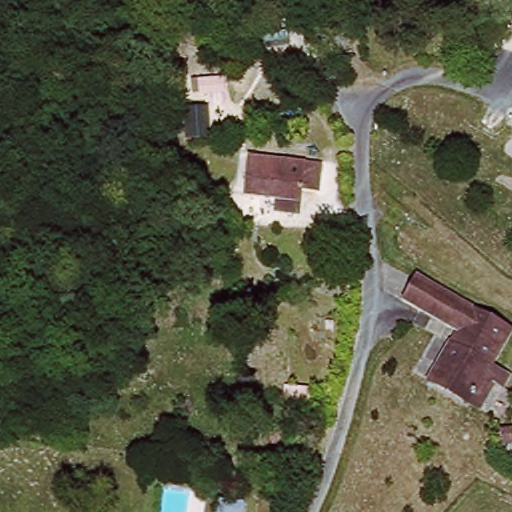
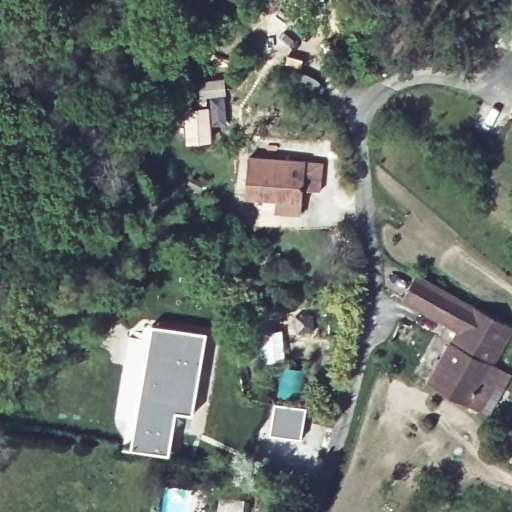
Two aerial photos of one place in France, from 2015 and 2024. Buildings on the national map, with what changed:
new [(204,107),(206,125),(206,138),(184,139),(182,109),(199,108),(204,107)]
unchanged [(278,212),(277,199),(246,195),(251,157),(321,165),(320,189),(303,188),(301,201),(298,213),(278,212)]
unchanged [(389,292),(397,278),(410,285),(417,273),(484,314),(473,334),(470,338),(389,292)]
new [(150,322),(205,332),(183,455),(128,446),(150,322)]
unchanged [(506,387),(494,384),(482,409),(474,405),(424,383),(444,341),(464,351),(470,338),(473,334),(496,345),(489,362),(493,364),(512,373),(506,387)]
new [(273,401),(304,406),(299,438),(267,432),(273,401)]
unchanged [(219,512),(222,498),(245,502),(243,512),(219,512)]

